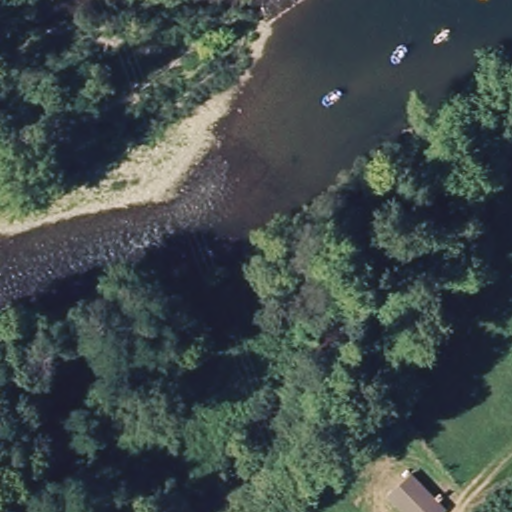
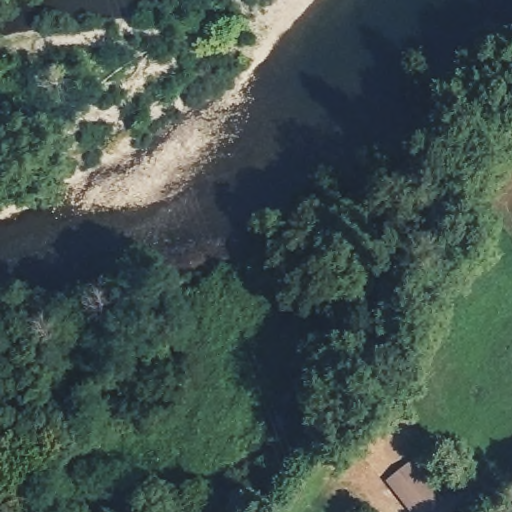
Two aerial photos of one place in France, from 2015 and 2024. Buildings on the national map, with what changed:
unchanged [(383,493),(408,469),(442,507),(436,512),(401,512),(383,493)]

